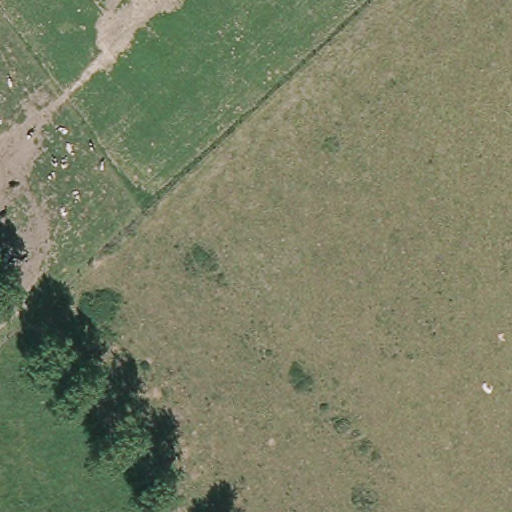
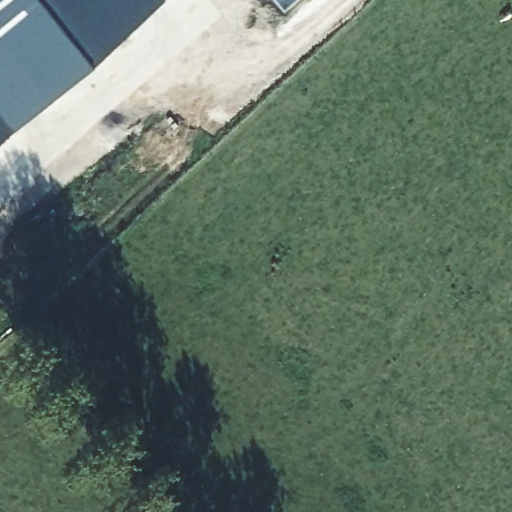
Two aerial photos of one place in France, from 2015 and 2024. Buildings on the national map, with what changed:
new [(0,140),(0,0),(161,0),(15,126),(0,140)]

